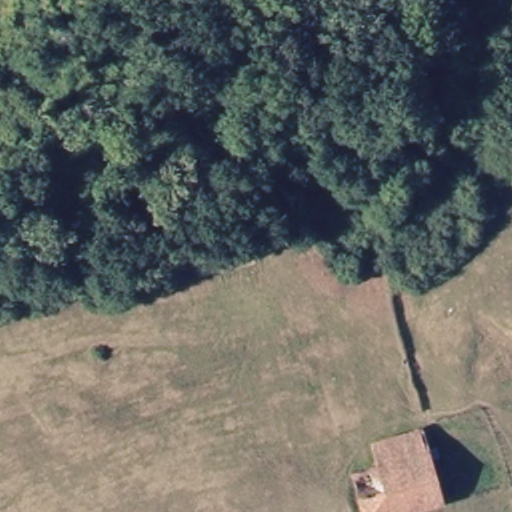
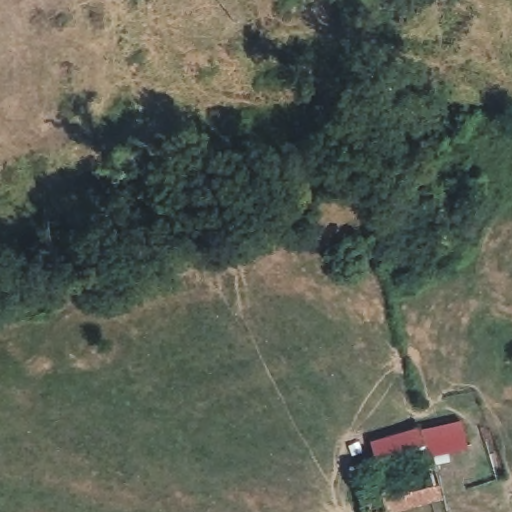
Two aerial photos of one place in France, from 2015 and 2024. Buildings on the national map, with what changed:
unchanged [(387,512),(363,512),(356,468),(380,463),(375,441),(425,431),(437,502),(387,512)]

